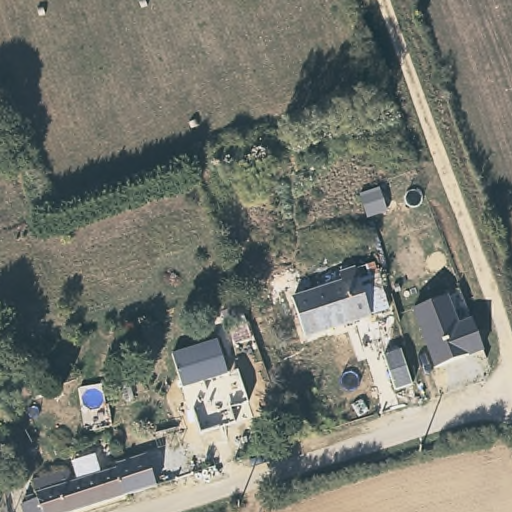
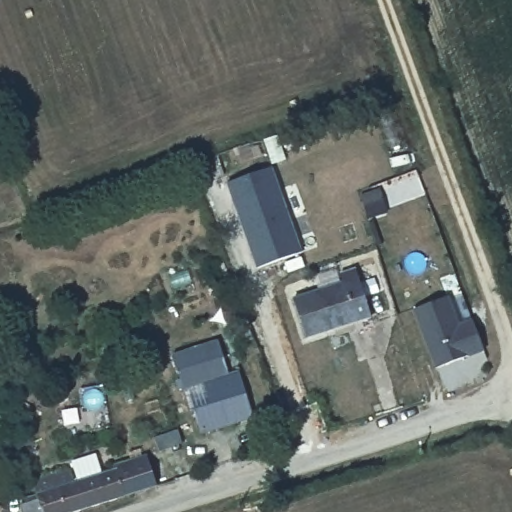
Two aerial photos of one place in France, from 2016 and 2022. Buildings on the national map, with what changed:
new [(271,169),(302,253),(258,270),(245,234),(248,233),(236,202),(234,203),(226,185),(271,169)]
unchanged [(289,306),(337,291),(335,282),(355,274),(370,269),(387,318),(370,324),(301,347),(289,306)]
unchanged [(447,297),(458,323),(471,320),(483,351),(436,369),(415,307),(447,297)]
unchanged [(175,363),(173,358),(219,344),(230,378),(229,378),(184,392),(175,363)]
unchanged [(239,372),(252,418),(202,434),(184,392),(229,378),(239,372)]
unchanged [(86,482),(126,469),(125,464),(158,454),(169,485),(92,510),(84,481),(80,471),(82,470),(86,482)]
unchanged [(49,496),(44,482),(80,471),(84,481),(92,510),(88,512),(36,512),(35,507),(39,506),(40,505),(38,500),(49,496)]

